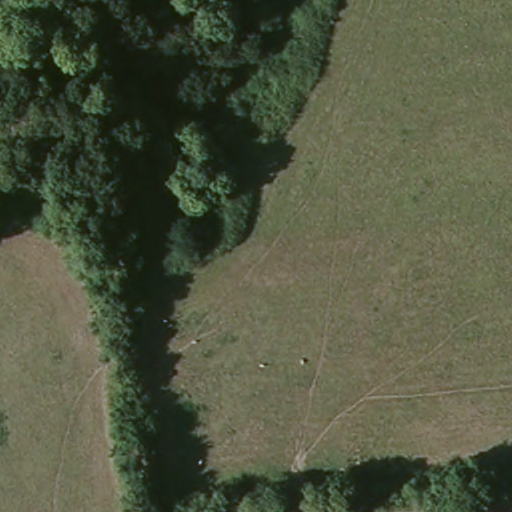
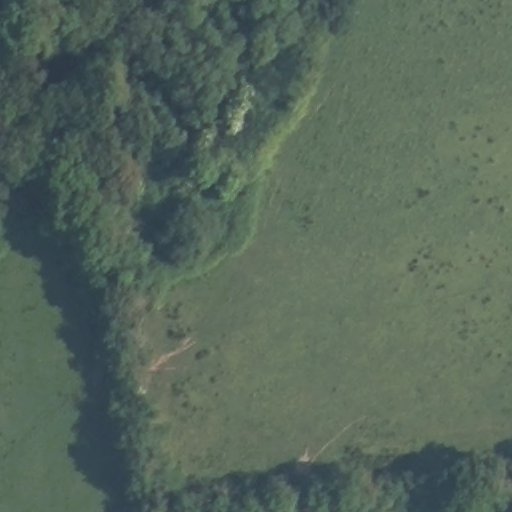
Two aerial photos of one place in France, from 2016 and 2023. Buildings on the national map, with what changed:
[]

